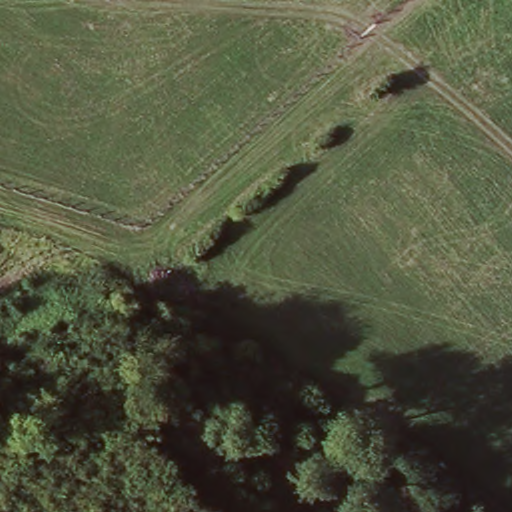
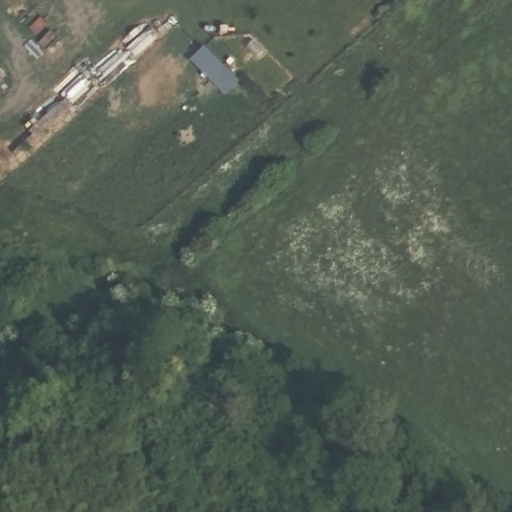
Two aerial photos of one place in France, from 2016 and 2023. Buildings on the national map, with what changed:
new [(239,77),(225,91),(191,57),(204,44),(239,77)]

